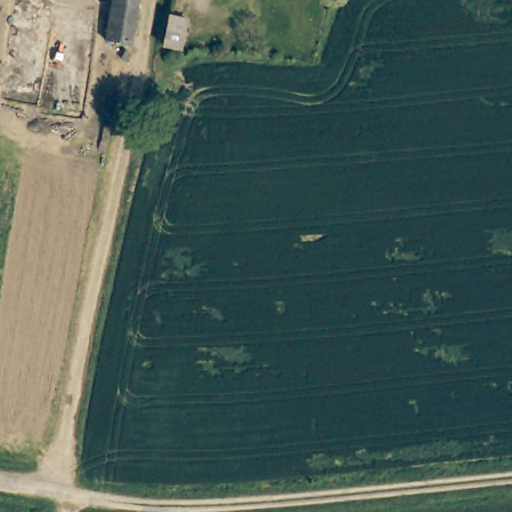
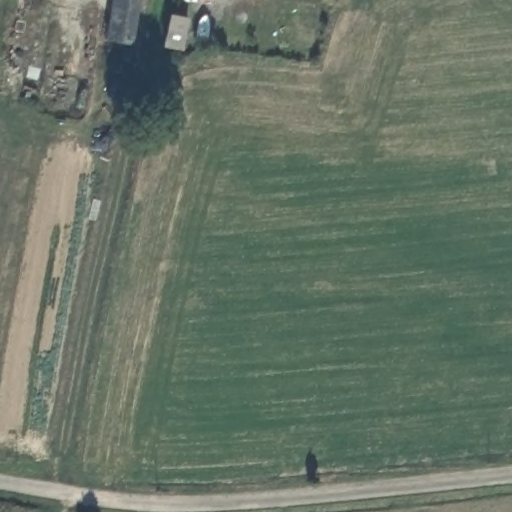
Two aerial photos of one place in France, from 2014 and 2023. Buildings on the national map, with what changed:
unchanged [(131,47),(107,42),(114,0),(139,0),(131,47)]
unchanged [(187,23),(179,50),(161,46),(168,18),(187,23)]

